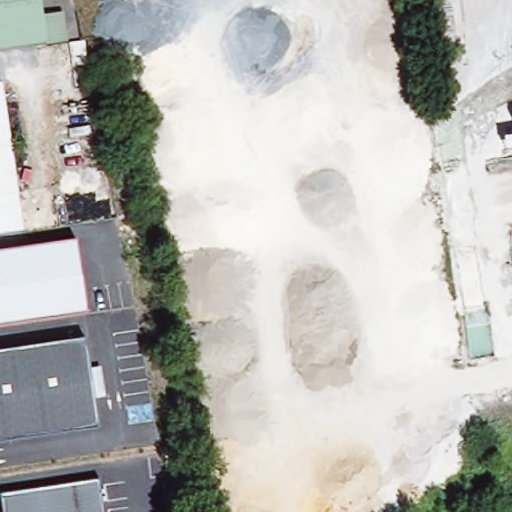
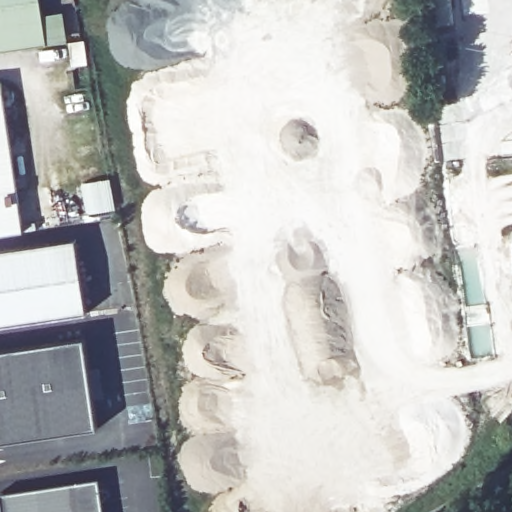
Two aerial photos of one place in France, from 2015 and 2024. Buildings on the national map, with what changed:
unchanged [(47,45),(0,51),(0,0),(40,0),(42,12),(65,8),(70,41),(47,45)]
unchanged [(435,73),(431,44),(445,42),(449,72),(435,73)]
unchanged [(435,91),(433,78),(444,76),(446,89),(435,91)]
unchanged [(0,239),(0,83),(2,83),(25,235),(0,239)]
unchanged [(87,316),(0,329),(0,253),(76,242),(87,316)]
unchanged [(96,370),(100,399),(89,401),(93,431),(0,444),(0,352),(80,341),(85,371),(96,370)]
unchanged [(97,478),(102,512),(6,512),(3,493),(97,478)]

